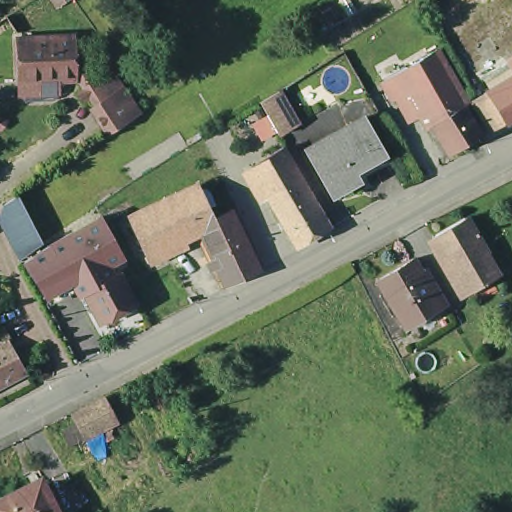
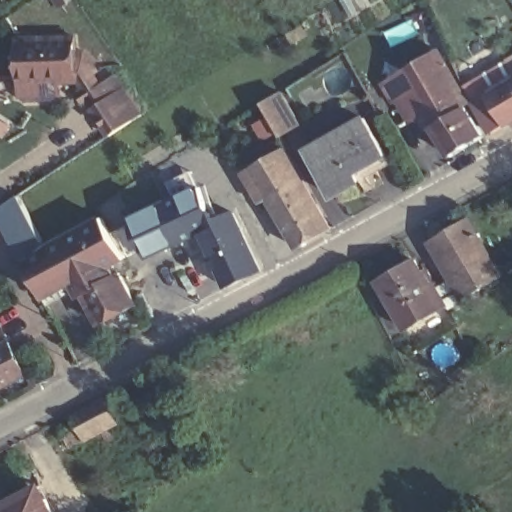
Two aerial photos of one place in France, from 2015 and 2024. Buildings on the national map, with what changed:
unchanged [(102,136),(77,95),(86,91),(77,86),(61,87),(62,98),(20,99),(19,88),(17,40),(75,40),(104,79),(116,71),(142,112),(102,136)]
unchanged [(424,100),(414,81),(394,93),(385,77),(400,68),(392,55),(416,41),(424,54),(440,45),(459,80),(454,82),(465,100),(485,130),(452,149),(435,118),(424,100)]
unchanged [(507,53),(512,51),(512,62),(507,53)]
unchanged [(507,118),(506,117),(492,126),(474,96),(488,87),(512,73),(512,115),(507,118)]
unchanged [(301,123),(282,134),(263,101),(282,90),(301,123)]
unchanged [(307,142),(364,111),(389,157),(332,188),(307,142)]
unchanged [(252,165),(284,147),(299,173),(267,191),(252,165)]
unchanged [(299,173),(328,225),(297,243),(267,191),(299,173)]
unchanged [(194,231),(147,255),(130,219),(199,185),(214,219),(234,210),(240,227),(258,269),(226,282),(210,241),(200,245),(194,231)]
unchanged [(19,261),(0,227),(0,209),(13,200),(39,246),(19,261)]
unchanged [(435,235),(469,215),(489,251),(502,275),(468,294),(435,235)]
unchanged [(76,300),(67,285),(46,249),(97,221),(118,260),(105,269),(111,279),(81,297),(76,300)]
unchanged [(57,331),(41,301),(42,300),(24,265),(46,249),(67,285),(49,296),(66,327),(57,331)]
unchanged [(415,256),(442,302),(405,323),(379,278),(415,256)]
unchanged [(116,276),(132,308),(97,325),(81,297),(111,279),(116,276)]
unchanged [(27,376),(0,390),(0,350),(11,345),(27,376)]
unchanged [(71,417),(102,401),(114,425),(82,440),(65,449),(57,434),(76,425),(71,417)]
unchanged [(0,498),(40,478),(57,512),(0,512),(0,498)]
unchanged [(489,504),(497,512),(482,512),(489,504)]

